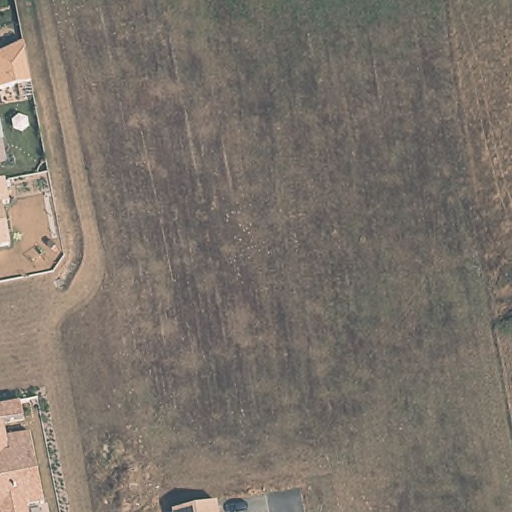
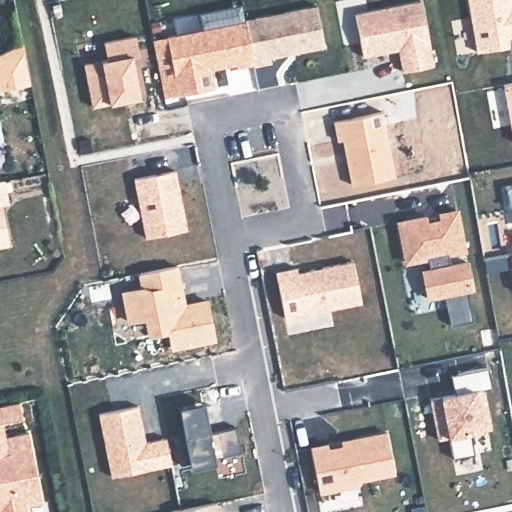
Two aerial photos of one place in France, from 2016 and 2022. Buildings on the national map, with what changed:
new [(422,0),(435,63),(404,69),(399,47),(364,54),(356,11),(410,0),(422,0)]
new [(511,47),(475,52),(467,0),(512,0),(512,36),(509,36),(511,47)]
new [(325,49),(212,69),(216,88),(178,95),(167,34),(316,5),(325,49)]
new [(133,34),(138,53),(131,54),(140,96),(111,102),(93,105),(83,63),(106,58),(103,41),(133,34)]
unchanged [(0,90),(0,53),(22,43),(31,83),(0,90)]
new [(512,85),(512,136),(503,86),(512,85)]
new [(351,184),(344,139),(336,140),(333,121),(382,112),(394,178),(351,184)]
new [(177,169),(189,230),(144,239),(134,179),(177,169)]
unchanged [(3,205),(10,246),(0,248),(0,180),(5,179),(10,205),(3,205)]
new [(506,186),(512,185),(512,208),(510,209),(506,186)]
new [(457,210),(465,252),(448,254),(450,267),(468,262),(473,290),(467,292),(474,322),(451,327),(445,297),(427,300),(416,301),(406,262),(398,222),(457,210)]
new [(360,304),(284,318),(275,270),(297,266),(298,273),(352,260),(360,304)]
new [(175,265),(181,304),(205,300),(212,339),(173,347),(169,329),(148,334),(146,318),(127,323),(122,290),(141,287),(138,272),(175,265)]
new [(459,394),(455,374),(485,368),(489,389),(477,391),(480,404),(484,404),(489,430),(469,434),(473,455),(452,459),(447,438),(437,440),(429,399),(459,394)]
unchanged [(3,421),(5,436),(26,432),(43,503),(27,506),(28,512),(0,512),(0,405),(19,402),(23,418),(3,421)]
new [(137,404),(144,441),(164,437),(170,463),(111,475),(98,412),(137,404)]
new [(182,439),(176,409),(201,404),(207,434),(234,428),(239,454),(212,459),(213,466),(188,471),(187,464),(178,466),(173,441),(182,439)]
new [(326,441),(327,448),(343,445),(341,439),(388,429),(396,474),(365,480),(360,487),(320,494),(311,444),(326,441)]
unchanged [(170,511),(216,501),(218,512),(170,512),(170,511)]

